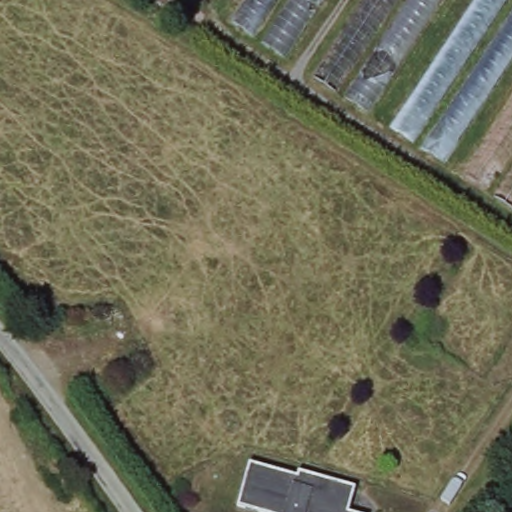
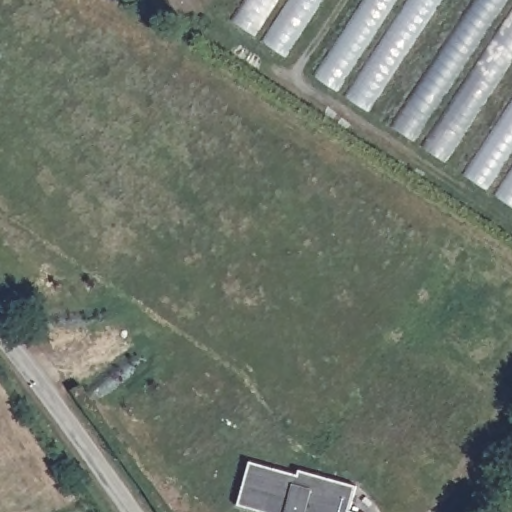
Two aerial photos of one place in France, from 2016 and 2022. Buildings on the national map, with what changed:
unchanged [(282,58),(228,20),(241,0),(321,0),(282,58)]
unchanged [(367,113),(313,78),(363,0),(443,0),(367,113)]
unchanged [(442,164),(389,126),(472,0),(512,0),(512,62),(442,164)]
new [(465,175),(512,103),(512,207),(465,175)]
unchanged [(297,470),(354,486),(349,512),(256,512),(237,508),(249,463),(296,475),(297,470)]

